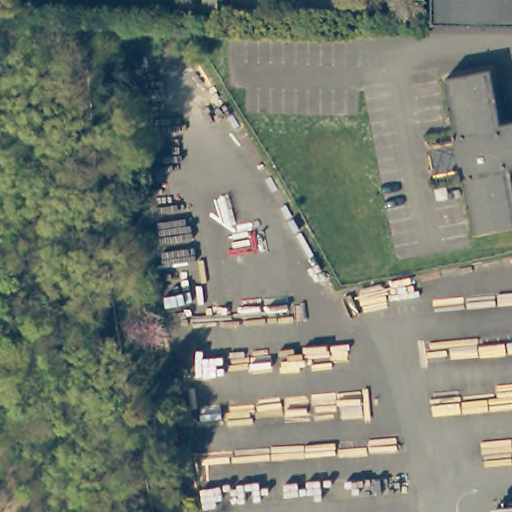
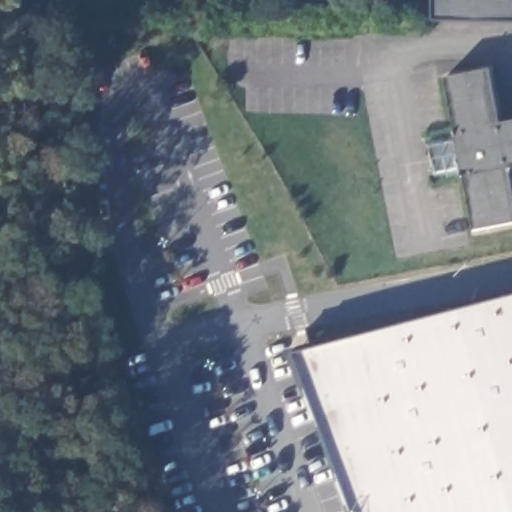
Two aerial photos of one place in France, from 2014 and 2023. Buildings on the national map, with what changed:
unchanged [(433,0),(512,0),(512,23),(433,22),(433,0)]
unchanged [(490,69),(500,124),(512,122),(512,168),(508,168),(512,186),(512,224),(476,230),(465,178),(456,132),(445,77),(490,69)]
unchanged [(465,178),(437,183),(429,136),(456,132),(465,178)]
new [(512,297),(512,512),(350,512),(290,355),(512,297)]
demolished [(512,505),(512,512),(504,512),(503,505),(512,505)]

